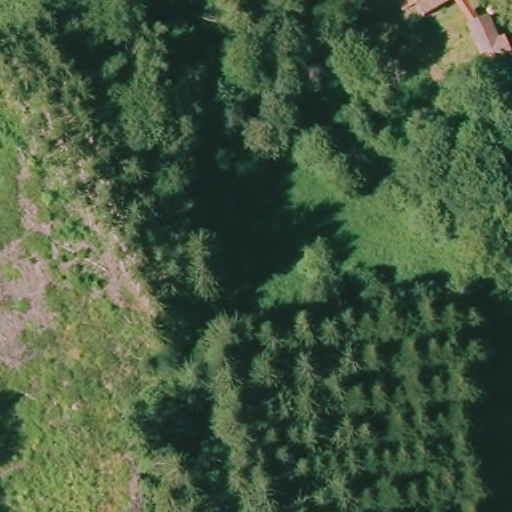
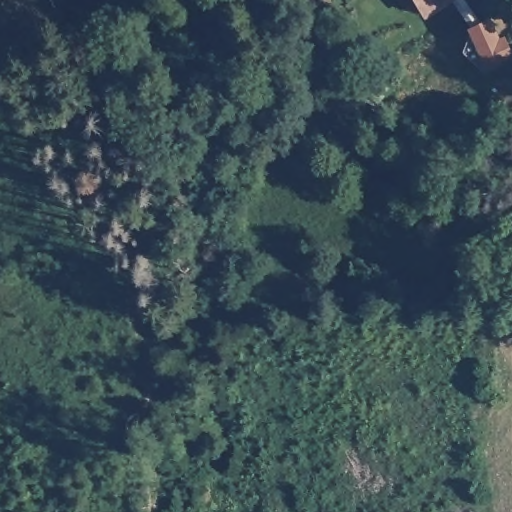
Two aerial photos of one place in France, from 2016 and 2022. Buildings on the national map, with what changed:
unchanged [(424,5),(412,9),(409,0),(467,0),(432,19),(424,5)]
unchanged [(503,29),(512,48),(512,67),(502,72),(485,38),(503,29)]

